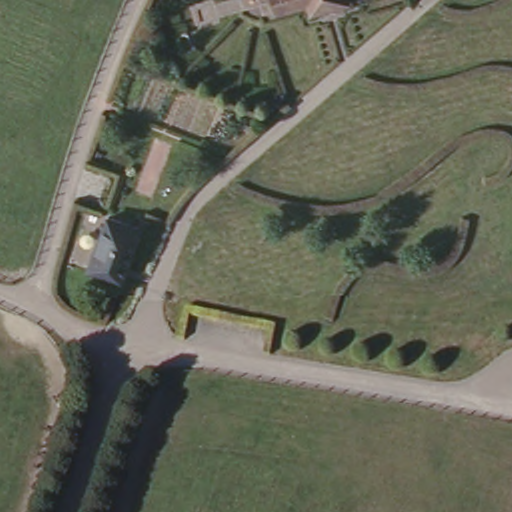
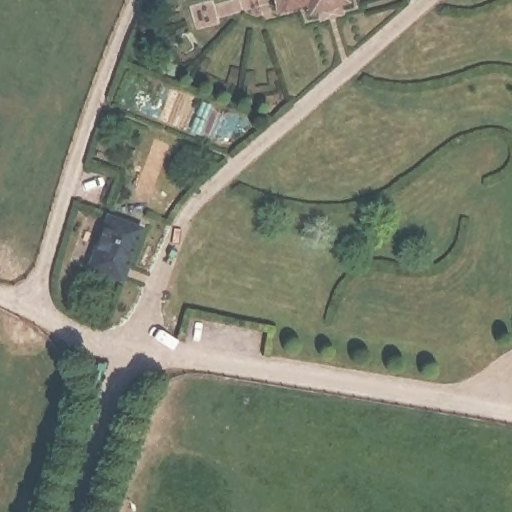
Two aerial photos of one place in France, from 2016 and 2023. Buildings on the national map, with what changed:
unchanged [(275,4),(274,0),(291,0),(275,4)]
unchanged [(309,4),(308,0),(324,0),(309,4)]
unchanged [(122,277),(85,265),(107,212),(143,222),(122,277)]

